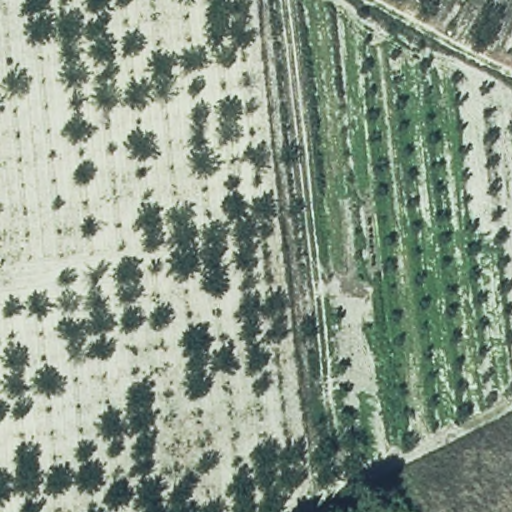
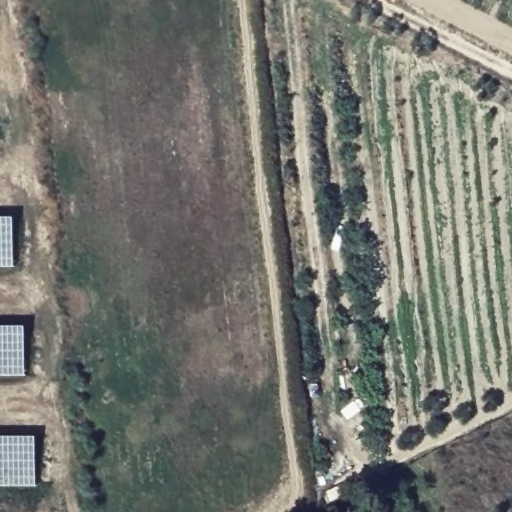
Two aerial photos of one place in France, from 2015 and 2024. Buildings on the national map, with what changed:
new [(14,265),(0,266),(0,215),(14,215),(14,265)]
new [(26,373),(0,373),(0,324),(25,324),(26,373)]
new [(36,483),(0,484),(0,435),(36,435),(36,483)]

